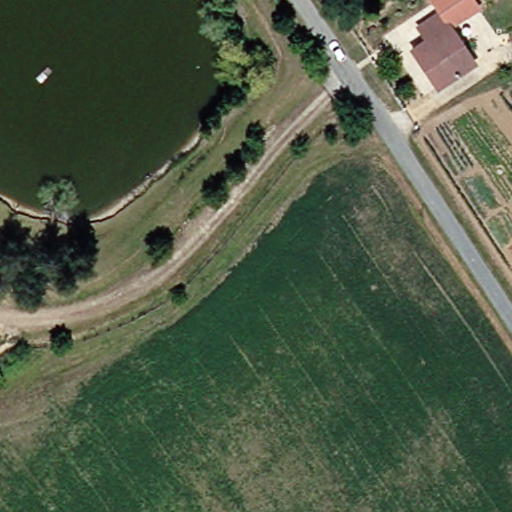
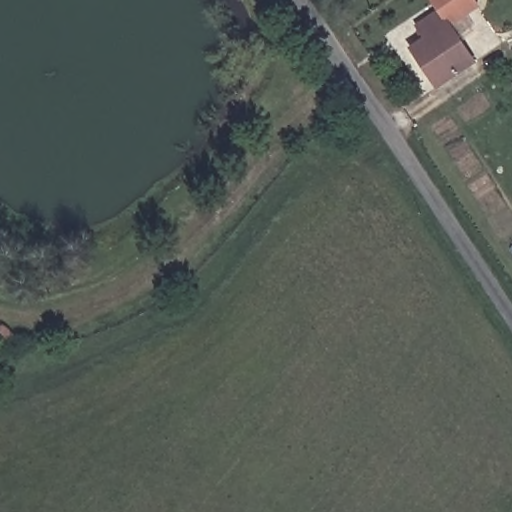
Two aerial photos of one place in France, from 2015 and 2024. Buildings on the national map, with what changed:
unchanged [(433,41),(423,27),(445,12),(436,0),(479,0),(483,6),(455,26),(480,62),(444,87),(431,68),(419,50),(424,46),(433,41)]

